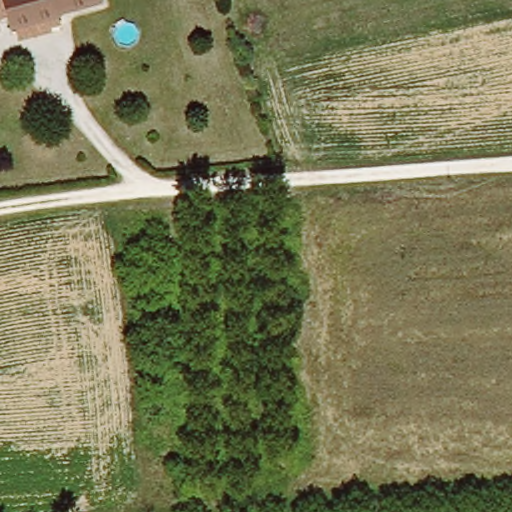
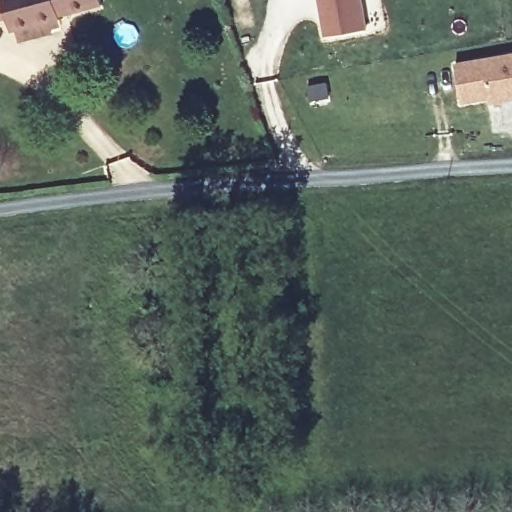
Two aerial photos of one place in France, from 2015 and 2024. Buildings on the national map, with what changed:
unchanged [(14,29),(6,31),(2,17),(0,18),(0,0),(98,0),(55,15),(60,28),(19,42),(14,29)]
new [(325,35),(318,0),(363,0),(367,29),(325,35)]
new [(492,102),(491,97),(463,101),(457,64),(512,54),(512,98),(492,102)]

